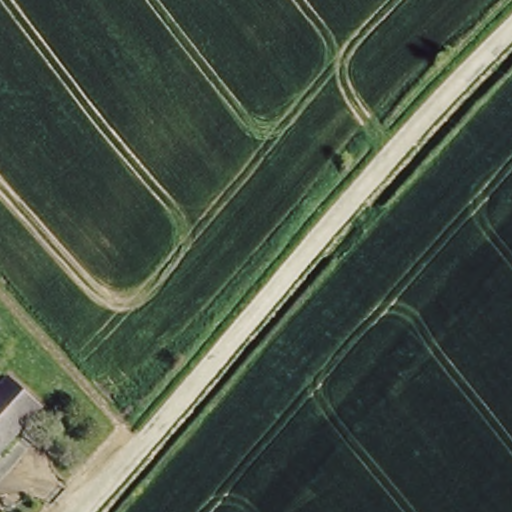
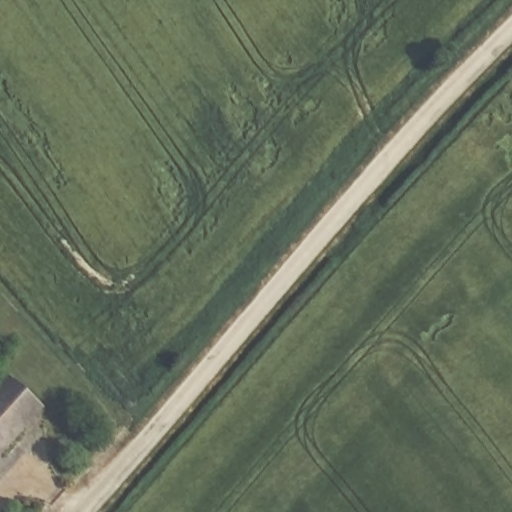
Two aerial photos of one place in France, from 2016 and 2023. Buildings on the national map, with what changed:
unchanged [(13,375),(48,405),(0,457),(0,391),(13,375)]

